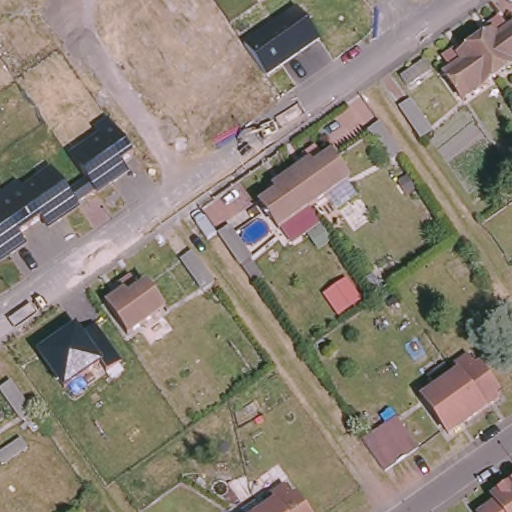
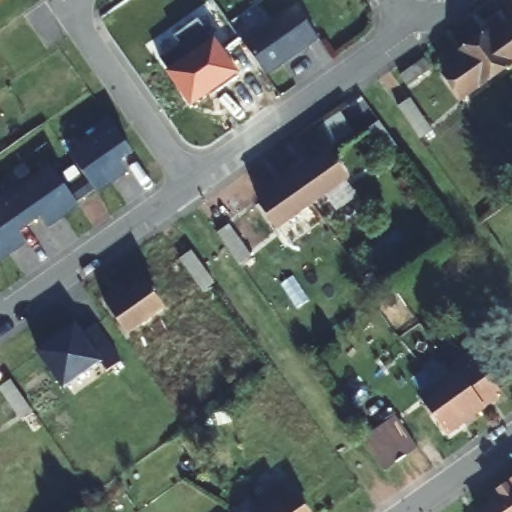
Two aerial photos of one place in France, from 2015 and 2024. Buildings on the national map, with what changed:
unchanged [(265,78),(238,41),(295,1),(320,39),(265,78)]
new [(160,54),(185,37),(181,29),(202,14),(239,72),(192,102),(160,54)]
unchanged [(493,32),(489,25),(502,16),(510,28),(512,26),(512,65),(499,75),(477,43),(493,32)]
unchanged [(464,99),(446,73),(452,69),(443,57),(456,49),(460,55),(477,43),(499,75),(464,99)]
unchanged [(411,99),(434,131),(422,139),(400,107),(411,99)]
unchanged [(369,130),(378,122),(380,122),(402,153),(401,155),(391,161),(369,130)]
unchanged [(95,192),(0,257),(0,197),(47,164),(69,195),(87,181),(65,152),(102,127),(132,165),(95,192)]
unchanged [(308,162),(304,156),(317,147),(325,159),(331,155),(349,181),(314,205),(292,174),(308,162)]
unchanged [(279,230),(261,204),(271,196),(268,191),(292,174),(314,205),(279,230)]
unchanged [(231,227),(253,258),(242,267),(219,235),(231,227)]
unchanged [(193,251),(216,282),(204,291),(182,259),(193,251)]
unchanged [(123,291),(119,285),(132,276),(140,287),(146,283),(164,309),(129,333),(107,302),(123,291)]
demolished [(346,278),(362,298),(339,317),(323,293),(346,278)]
unchanged [(78,322),(84,332),(95,325),(123,361),(107,371),(101,363),(65,389),(35,352),(78,322)]
unchanged [(512,333),(512,335),(511,333),(512,333)]
unchanged [(458,397),(447,380),(458,372),(453,365),(470,353),(495,385),(500,397),(485,407),(472,388),(458,397)]
unchanged [(9,381),(12,378),(31,406),(34,410),(31,412),(23,418),(1,386),(9,381)]
unchanged [(458,397),(472,388),(485,407),(465,421),(450,432),(424,396),(447,380),(458,397)]
unchanged [(386,424),(397,417),(419,447),(409,455),(397,462),(387,470),(365,439),(375,432),(386,424)]
unchanged [(504,512),(503,511),(497,502),(495,499),(493,496),(512,483),(512,510),(509,512),(504,512)]
unchanged [(264,510),(273,504),(268,497),(285,485),(305,512),(261,512),(264,510)]
unchanged [(503,511),(504,512),(481,512),(497,502),(503,511)]
unchanged [(509,512),(512,510),(512,512),(509,512)]

